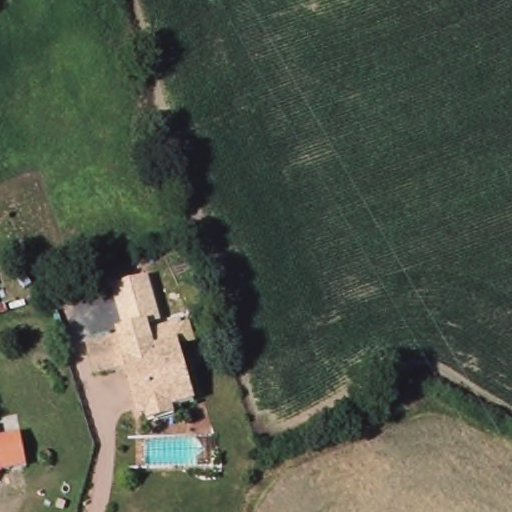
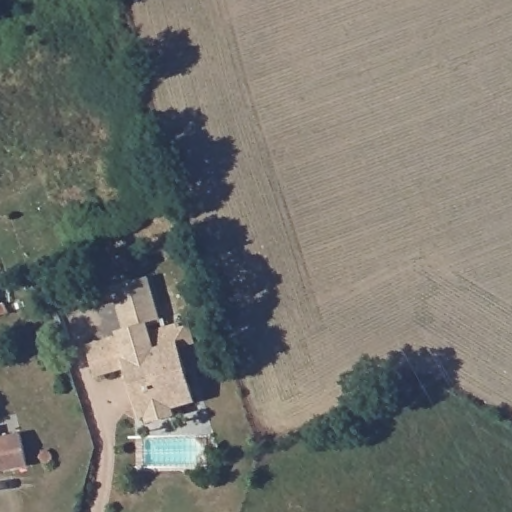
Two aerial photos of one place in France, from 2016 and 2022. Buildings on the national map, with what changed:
unchanged [(179,347),(197,401),(174,409),(176,418),(148,424),(146,417),(139,419),(125,367),(96,378),(86,342),(117,332),(124,329),(112,288),(147,277),(164,326),(191,320),(197,342),(179,347)]
unchanged [(0,316),(0,306),(5,304),(8,312),(0,316)]
unchanged [(27,466),(2,471),(0,471),(0,438),(21,433),(27,466)]

